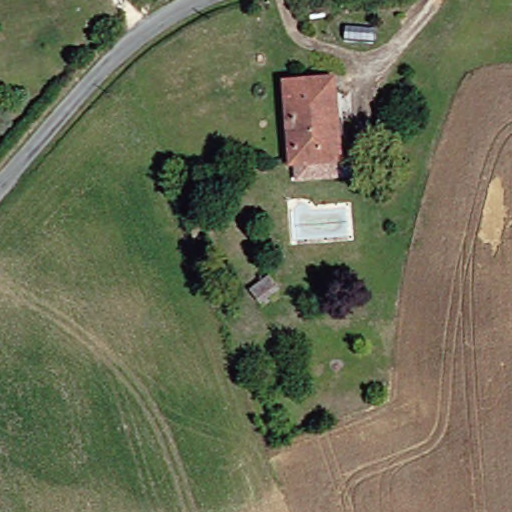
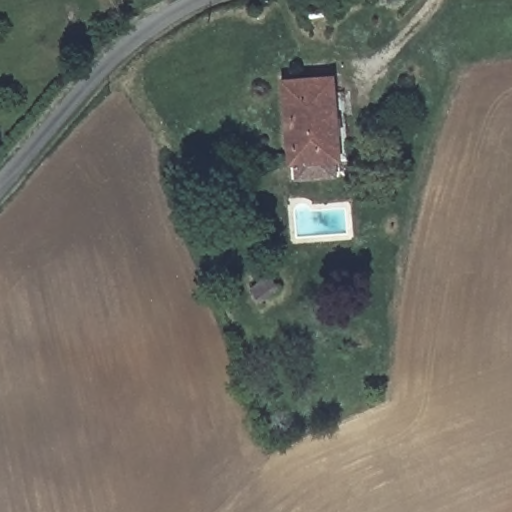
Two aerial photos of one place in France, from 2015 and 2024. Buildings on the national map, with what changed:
unchanged [(293,90),(345,86),(350,168),(300,170),(293,90)]
unchanged [(267,265),(260,280),(240,270),(247,255),(267,265)]

